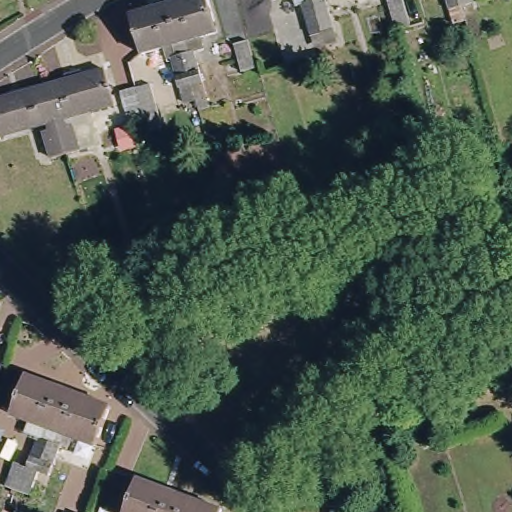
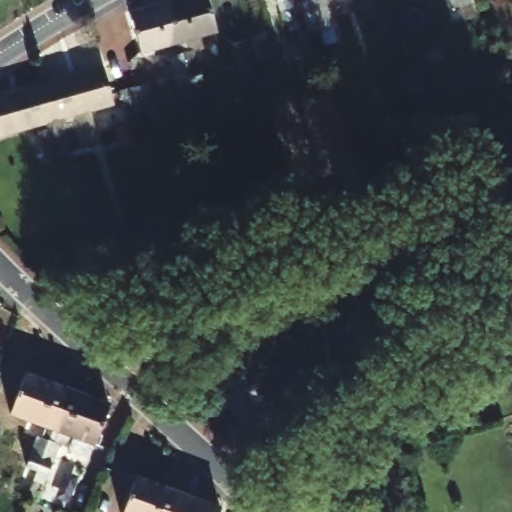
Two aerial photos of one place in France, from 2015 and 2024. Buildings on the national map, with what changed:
unchanged [(207,0),(217,34),(200,39),(204,52),(194,55),(202,85),(192,88),(169,7),(197,0),(207,0)]
unchanged [(271,0),(282,0),(272,2),(271,0)]
unchanged [(311,37),(302,7),(296,8),(294,0),(313,0),(322,34),(311,37)]
unchanged [(325,2),(332,31),(322,34),(313,0),(328,0),(328,1),(325,2)]
unchanged [(404,0),(411,27),(395,31),(387,1),(388,0),(404,0)]
unchanged [(447,7),(445,0),(459,0),(461,4),(447,7)]
unchanged [(471,0),(471,1),(461,4),(459,0),(471,0)]
unchanged [(192,88),(181,91),(172,61),(177,60),(172,46),(140,55),(130,19),(169,7),(192,88)]
unchanged [(255,65),(242,69),(235,43),(248,40),(255,65)]
unchanged [(51,85),(109,69),(119,104),(67,117),(71,130),(75,129),(82,155),(71,158),(51,85)]
unchanged [(121,91),(136,86),(150,82),(158,112),(144,116),(130,120),(121,91)]
unchanged [(59,161),(52,136),(59,134),(55,122),(1,137),(0,135),(0,99),(51,85),(71,158),(59,161)]
unchanged [(10,407),(0,403),(0,388),(6,374),(20,380),(10,407)]
unchanged [(59,432),(15,417),(30,377),(74,393),(59,432)]
unchanged [(74,393),(116,408),(101,448),(59,432),(74,393)]
unchanged [(60,441),(58,447),(64,449),(52,480),(42,477),(31,472),(42,442),(47,443),(50,437),(57,439),(60,441)]
unchanged [(106,468),(96,497),(82,492),(92,463),(106,468)]
unchanged [(179,512),(131,512),(144,480),(186,495),(179,512)]
unchanged [(186,495),(226,510),(225,512),(179,512),(186,495)]

